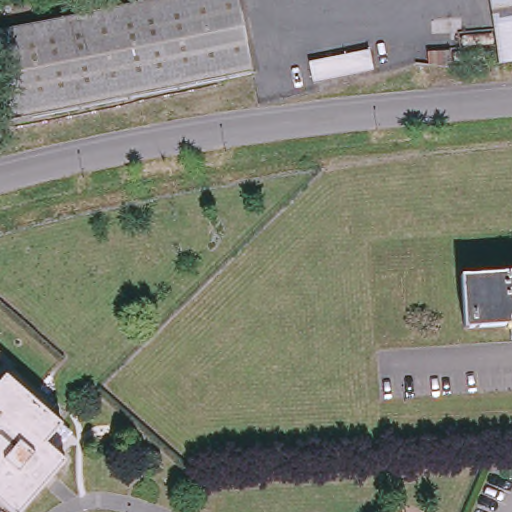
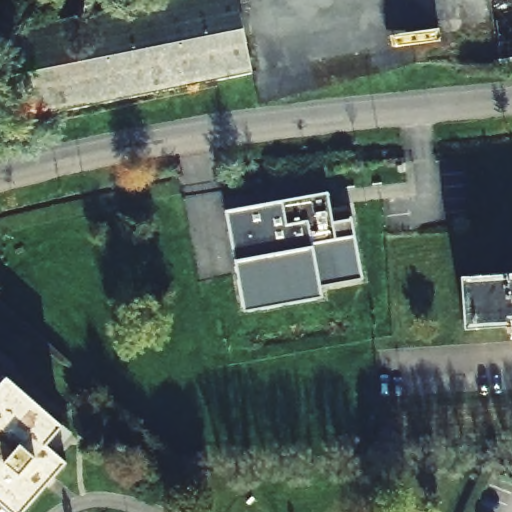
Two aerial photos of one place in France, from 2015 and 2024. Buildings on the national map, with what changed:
unchanged [(168,0),(238,0),(252,72),(8,123),(0,84),(0,34),(168,0)]
unchanged [(499,63),(490,0),(512,0),(512,62),(499,63)]
new [(328,188),(333,218),(353,214),(363,275),(321,283),(323,293),(244,308),(225,206),(328,188)]
unchanged [(467,273),(512,271),(512,322),(468,324),(467,273)]
unchanged [(51,440),(72,458),(25,512),(19,512),(1,497),(0,498),(0,390),(14,374),(68,421),(51,440)]

